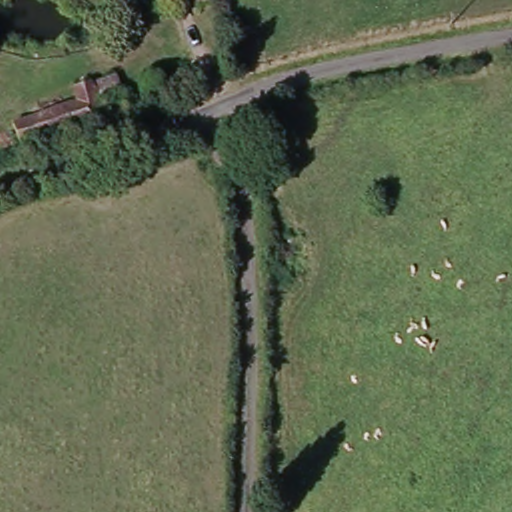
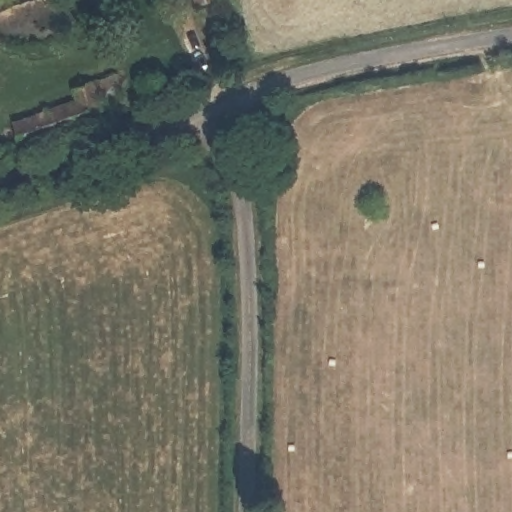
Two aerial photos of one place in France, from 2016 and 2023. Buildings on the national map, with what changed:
unchanged [(198,11),(195,0),(218,0),(220,6),(198,11)]
unchanged [(122,114),(20,145),(12,123),(75,106),(66,94),(116,75),(122,114)]

